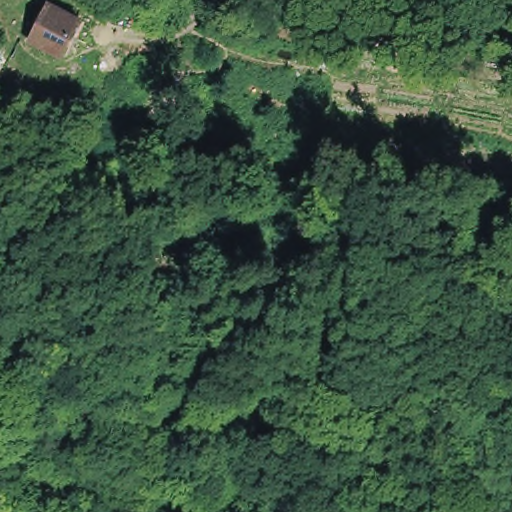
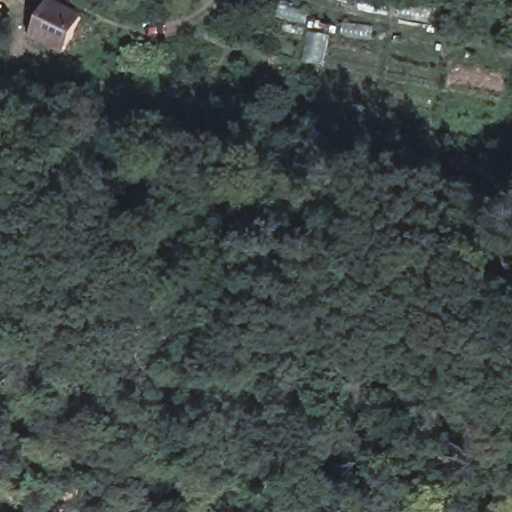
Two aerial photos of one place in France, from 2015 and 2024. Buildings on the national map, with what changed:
unchanged [(57,0),(85,15),(61,49),(30,33),(45,0),(57,0)]

